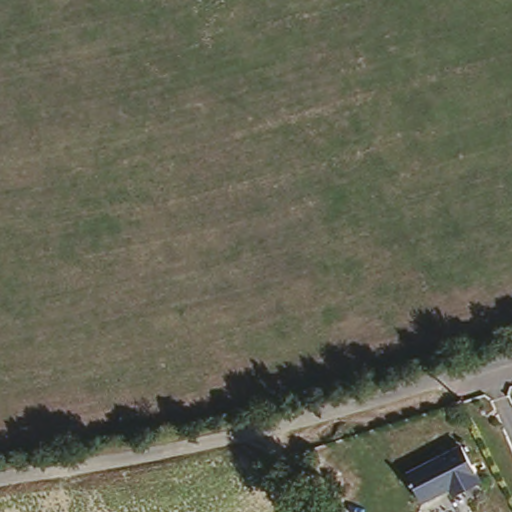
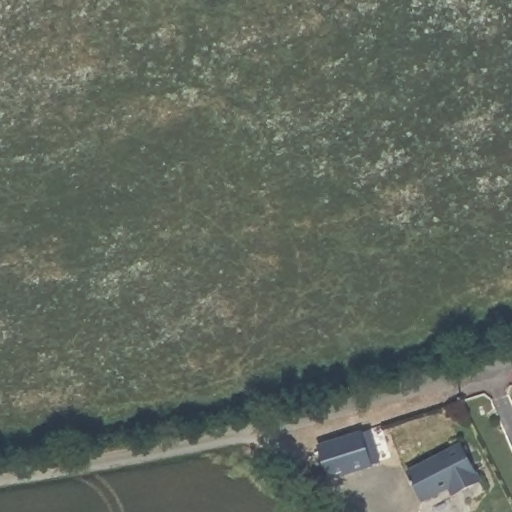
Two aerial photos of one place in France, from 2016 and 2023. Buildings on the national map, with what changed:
new [(360,431),(371,463),(330,476),(319,444),(360,431)]
unchanged [(462,447),(480,482),(453,497),(448,489),(423,502),(408,475),(462,447)]

